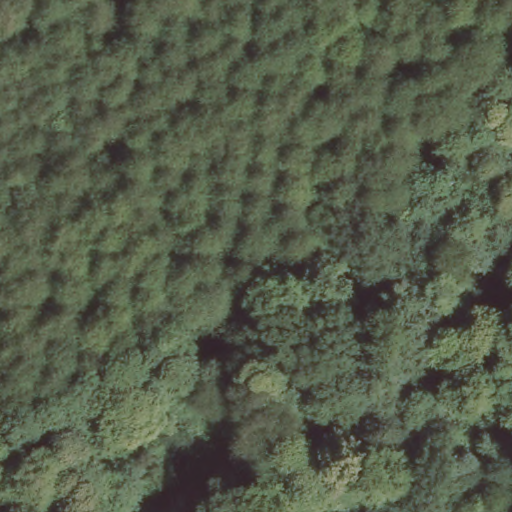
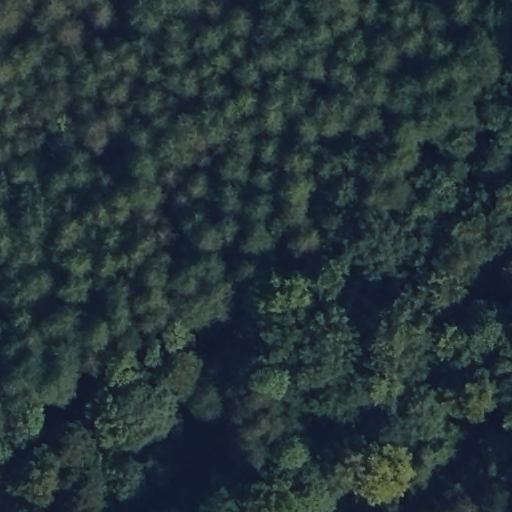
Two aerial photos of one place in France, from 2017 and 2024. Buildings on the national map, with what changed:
[]

